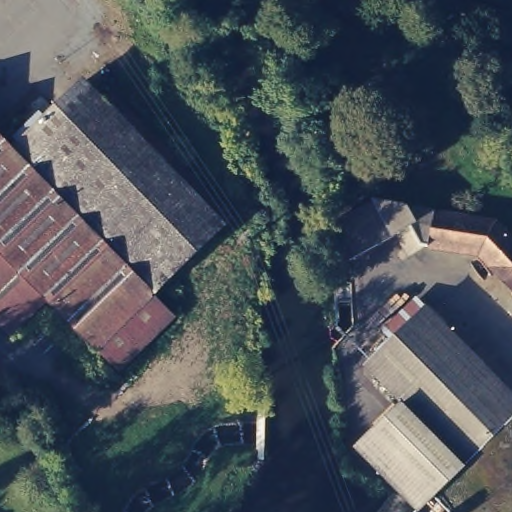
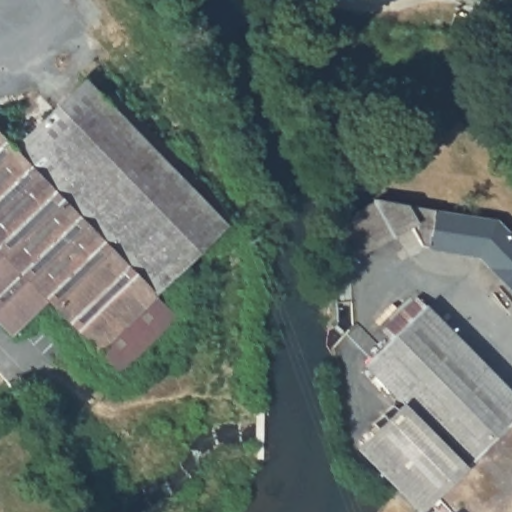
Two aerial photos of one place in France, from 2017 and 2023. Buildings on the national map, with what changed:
unchanged [(86,76),(225,220),(154,289),(176,312),(119,368),(51,298),(47,294),(0,244),(0,129),(15,144),(86,76)]
unchanged [(480,250),(425,241),(410,250),(397,229),(350,255),(332,225),(349,214),(347,211),(374,196),(497,216),(512,232),(512,283),(480,250)]
unchanged [(0,244),(47,294),(12,329),(0,317),(0,244)]
unchanged [(421,506),(359,443),(405,398),(367,360),(427,301),(512,388),(512,512),(458,512),(437,490),(421,506)]

